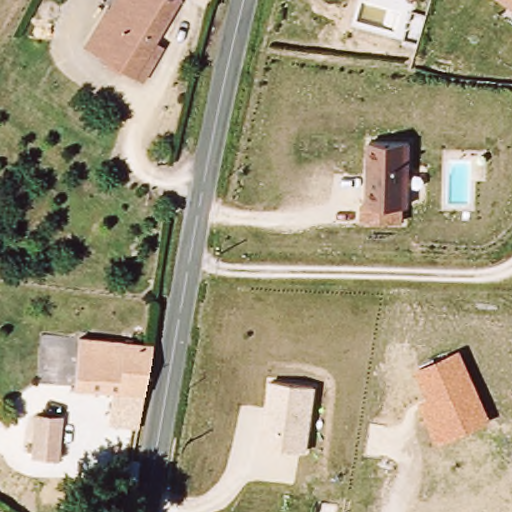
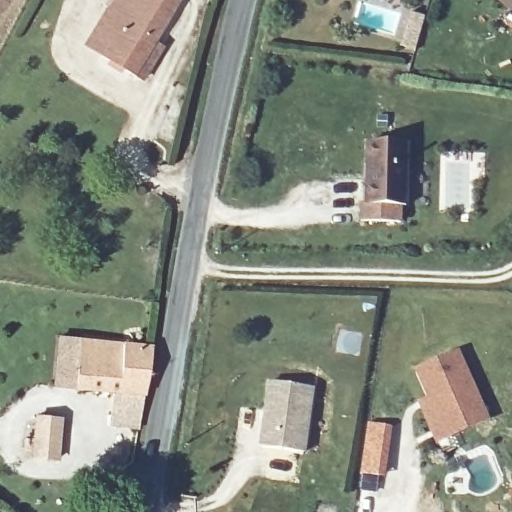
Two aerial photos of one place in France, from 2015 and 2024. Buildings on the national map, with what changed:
unchanged [(155,48),(137,80),(80,46),(104,7),(110,11),(117,0),(174,0),(148,44),(155,48)]
unchanged [(512,0),(512,12),(497,0),(512,0)]
unchanged [(400,223),(356,222),(356,200),(365,200),(367,141),(407,142),(405,201),(400,201),(400,223)]
unchanged [(115,394),(76,390),(81,342),(152,350),(144,398),(140,413),(114,410),(115,394)]
unchanged [(460,350),(490,420),(437,444),(420,403),(426,399),(415,371),(460,350)]
unchanged [(315,388),(306,455),(259,448),(268,381),(315,388)]
unchanged [(61,414),(56,467),(34,465),(37,413),(61,414)]
new [(386,478),(361,475),(368,422),(393,426),(386,478)]

